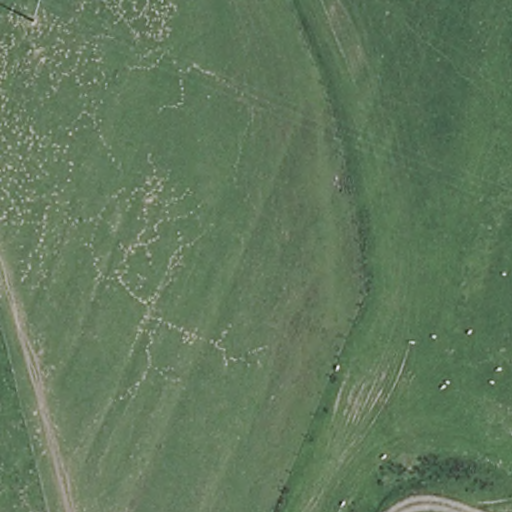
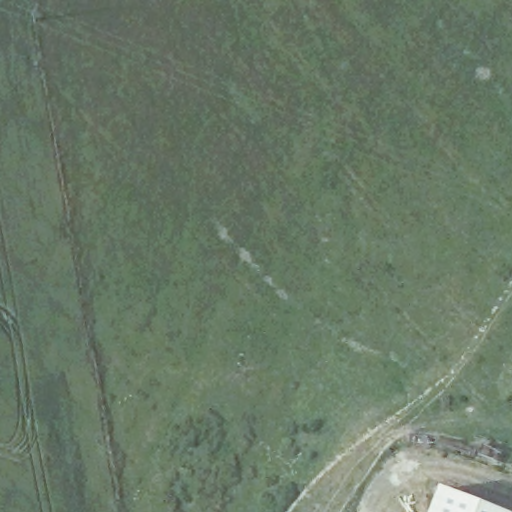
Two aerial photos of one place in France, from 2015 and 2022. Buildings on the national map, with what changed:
new [(440,490),(501,512),(432,512),(440,490)]

